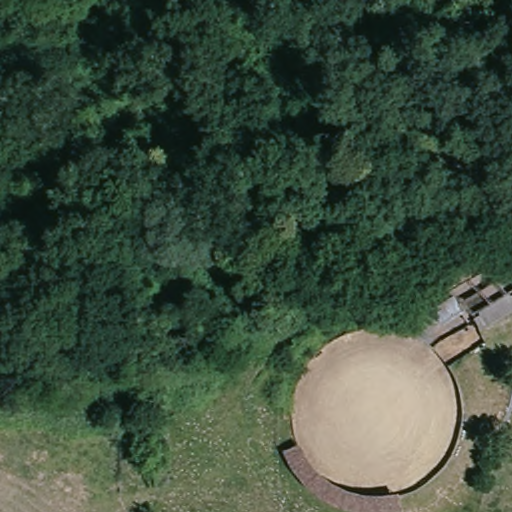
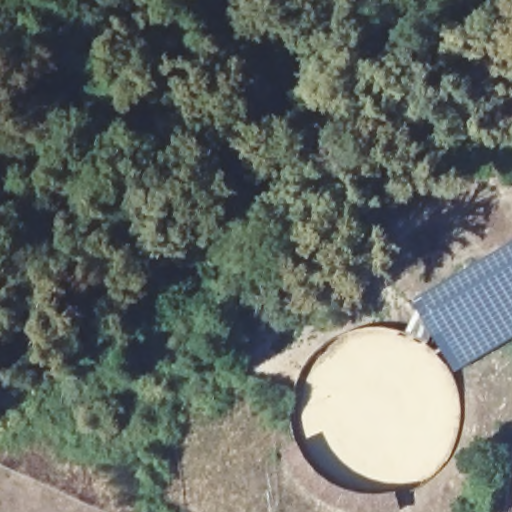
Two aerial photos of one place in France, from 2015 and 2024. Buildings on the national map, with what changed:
new [(512,246),(512,338),(455,372),(416,302),(512,246)]
demolished [(501,265),(512,279),(512,312),(482,330),(461,310),(440,323),(426,347),(417,341),(412,338),(405,335),(424,306),(501,265)]
new [(300,490),(280,452),(298,445),(316,472),(345,490),(373,495),(398,493),(401,510),(393,512),(357,512),(339,508),(300,490)]

